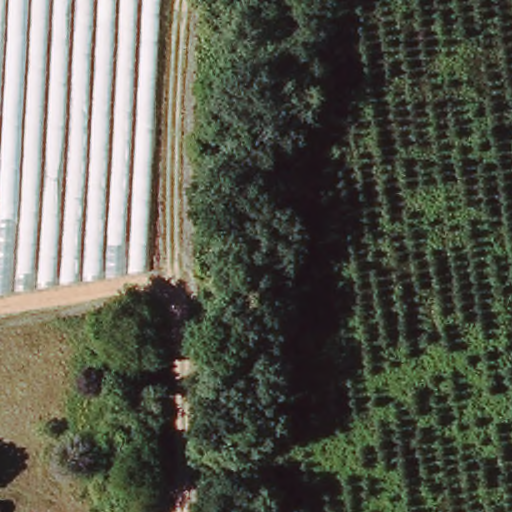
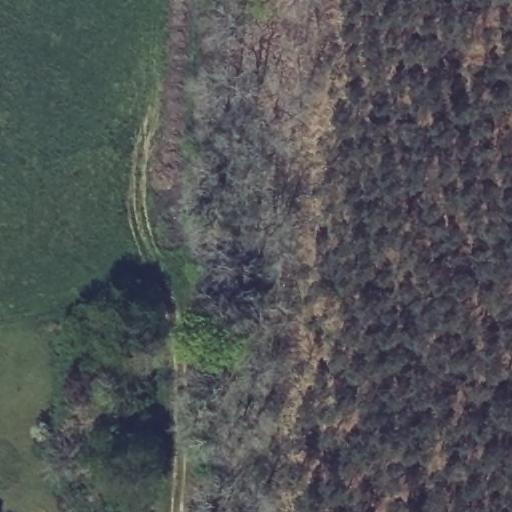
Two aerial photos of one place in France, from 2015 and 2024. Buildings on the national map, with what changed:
demolished [(158,0),(143,269),(0,291),(0,0),(158,0)]

